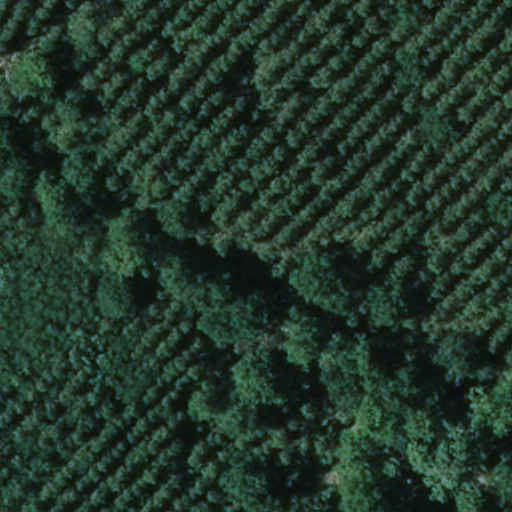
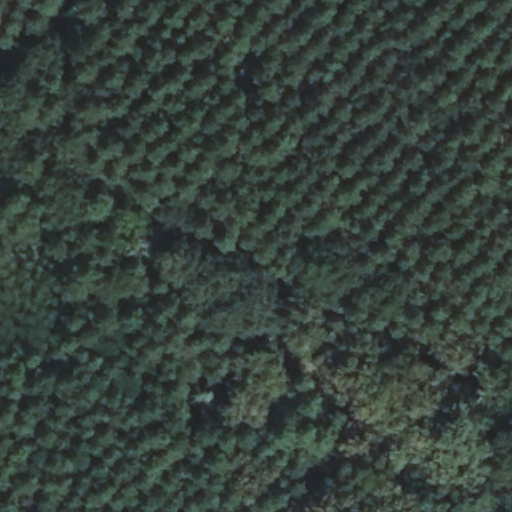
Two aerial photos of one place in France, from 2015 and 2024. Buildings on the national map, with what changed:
[]

